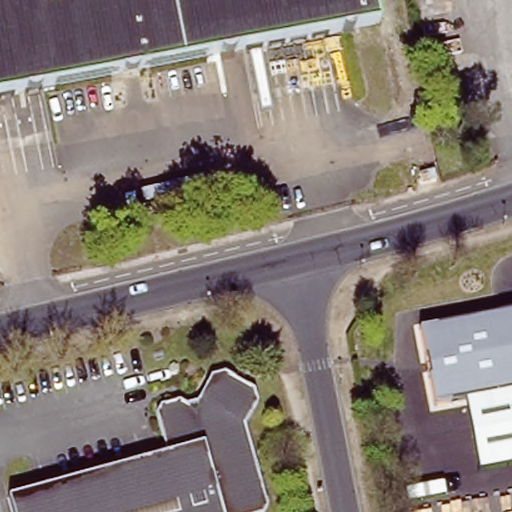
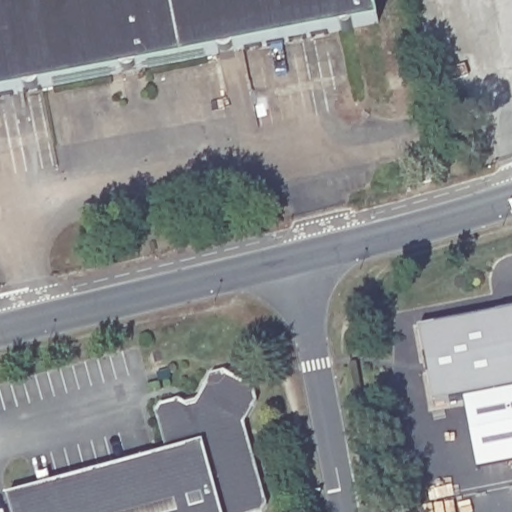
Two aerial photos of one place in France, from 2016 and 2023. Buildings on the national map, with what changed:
unchanged [(129,71),(0,96),(0,0),(378,0),(382,22),(129,71)]
unchanged [(431,169),(435,180),(420,183),(417,172),(431,169)]
unchanged [(512,310),(512,388),(462,397),(432,403),(417,328),(512,310)]
unchanged [(165,454),(153,413),(158,405),(177,400),(184,404),(195,401),(210,374),(220,372),(240,381),(252,387),(253,390),(255,400),(254,404),(243,422),(266,504),(262,512),(10,512),(6,496),(154,456),(165,454)]
unchanged [(512,388),(512,464),(476,471),(462,397),(512,388)]

